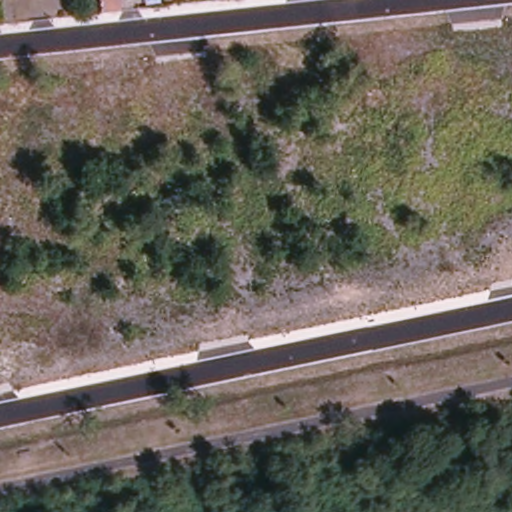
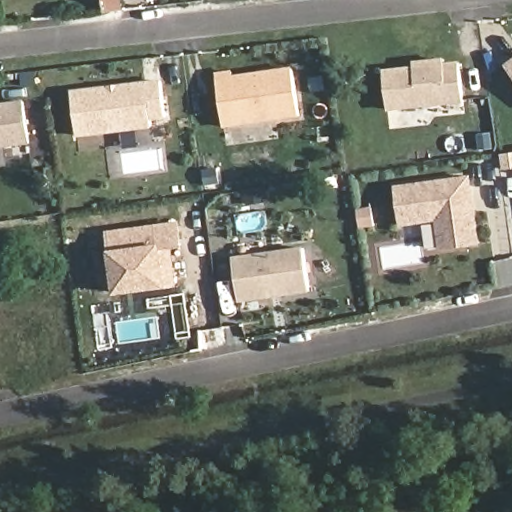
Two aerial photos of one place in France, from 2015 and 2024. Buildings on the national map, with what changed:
unchanged [(99,13),(98,0),(116,0),(116,7),(104,8),(104,12),(99,13)]
new [(387,109),(383,71),(414,68),(414,64),(444,61),(444,65),(460,64),(464,101),(387,109)]
new [(512,65),(512,70),(509,67),(512,65)]
new [(233,71),(234,76),(291,69),(301,118),(223,129),(214,73),(233,71)]
new [(165,117),(151,119),(152,127),(78,136),(72,91),(161,80),(165,117)]
new [(29,143),(0,147),(0,106),(23,102),(29,143)]
new [(482,245),(440,251),(435,222),(400,228),(393,186),(471,174),(482,245)]
new [(179,223),(182,250),(163,254),(169,293),(115,299),(108,233),(179,223)]
new [(310,293),(239,303),(232,256),(303,246),(310,293)]

